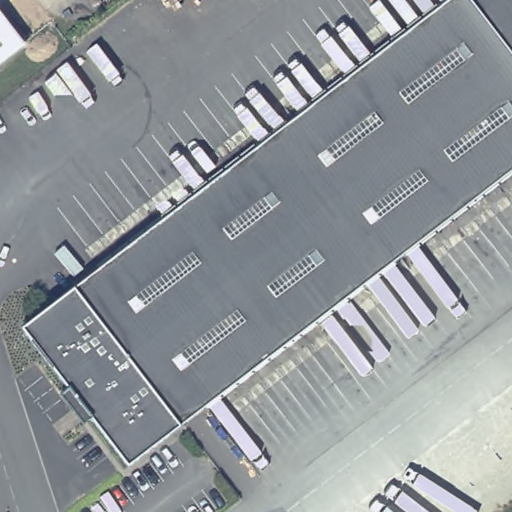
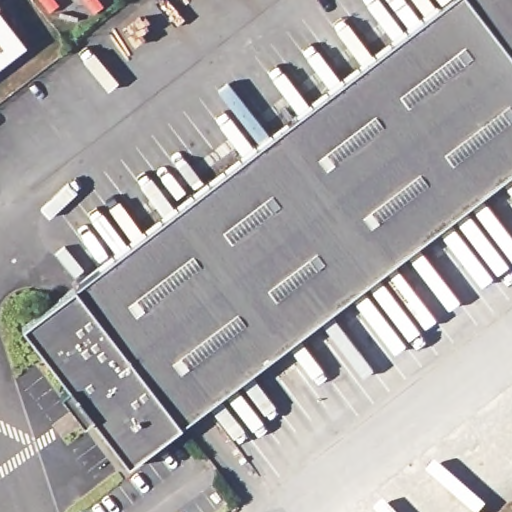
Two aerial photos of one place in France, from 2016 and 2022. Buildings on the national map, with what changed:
unchanged [(512,0),(512,165),(124,465),(16,327),(440,0),(512,0)]
unchanged [(0,59),(0,5),(26,39),(0,59)]

